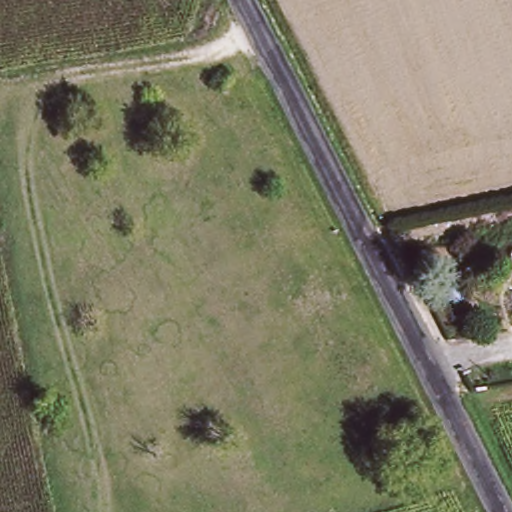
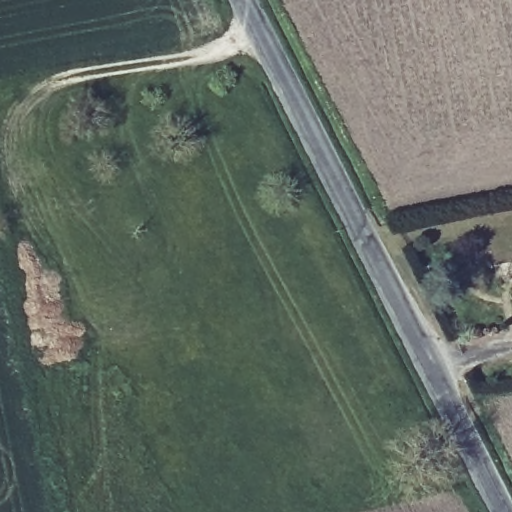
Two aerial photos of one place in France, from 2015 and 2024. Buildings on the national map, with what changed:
[]

